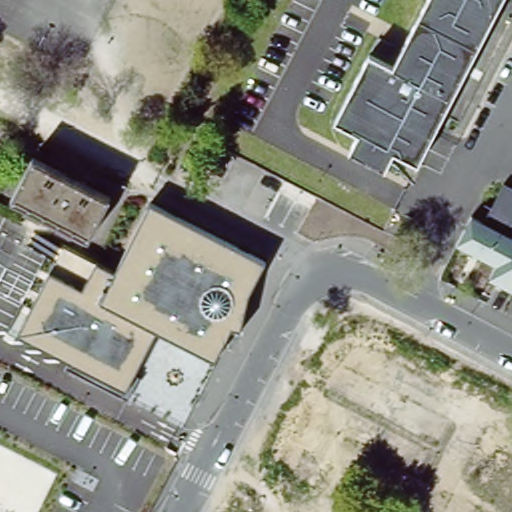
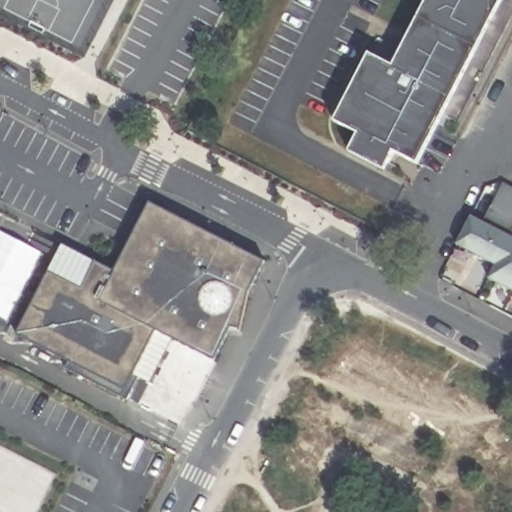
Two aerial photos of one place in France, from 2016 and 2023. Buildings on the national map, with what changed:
unchanged [(416,164),(392,151),(383,169),(347,150),(356,134),(332,120),(366,54),(389,66),(423,0),(512,0),(512,33),(460,135),(436,124),(416,164)]
demolished [(9,205),(31,163),(108,203),(86,245),(9,205)]
unchanged [(459,248),(475,218),(486,223),(506,185),(512,189),(512,292),(491,282),(497,267),(459,248)]
unchanged [(53,270),(66,244),(96,262),(116,272),(154,200),(266,262),(250,294),(241,330),(233,329),(215,363),(156,333),(126,389),(18,334),(53,270)]

